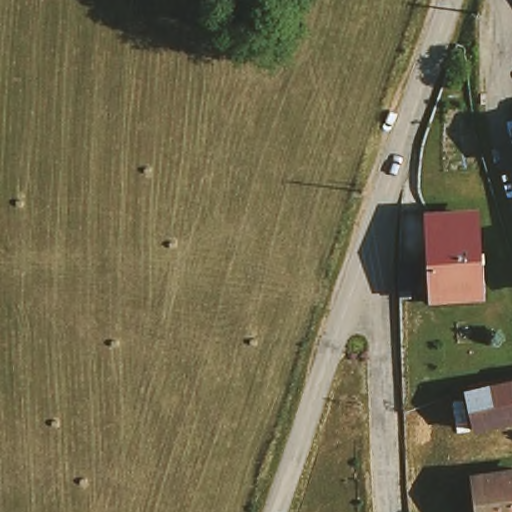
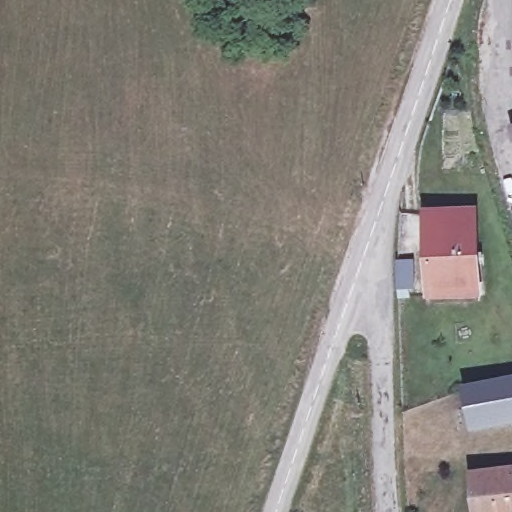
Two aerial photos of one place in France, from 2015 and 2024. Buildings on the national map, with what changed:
unchanged [(470,209),(478,287),(433,291),(425,214),(470,209)]
unchanged [(512,377),(512,418),(475,427),(465,387),(512,377)]
unchanged [(512,471),(512,512),(480,512),(474,476),(512,471)]

